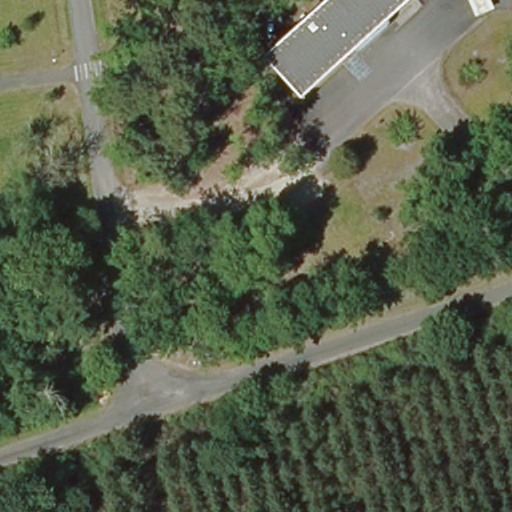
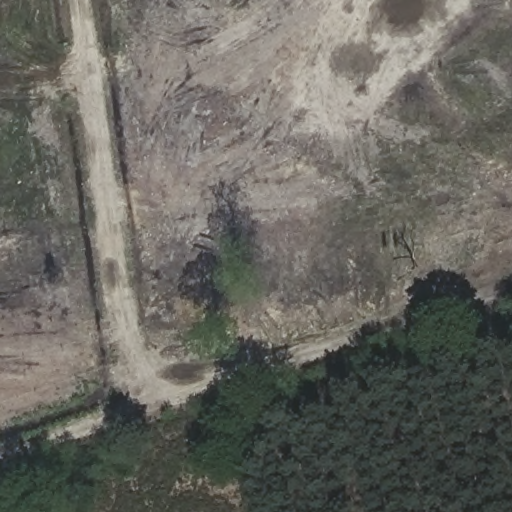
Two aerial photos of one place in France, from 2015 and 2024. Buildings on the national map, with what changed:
demolished [(263,63),(305,24),(298,16),(309,6),(316,15),(326,5),(321,0),(416,0),(299,105),(263,63)]

